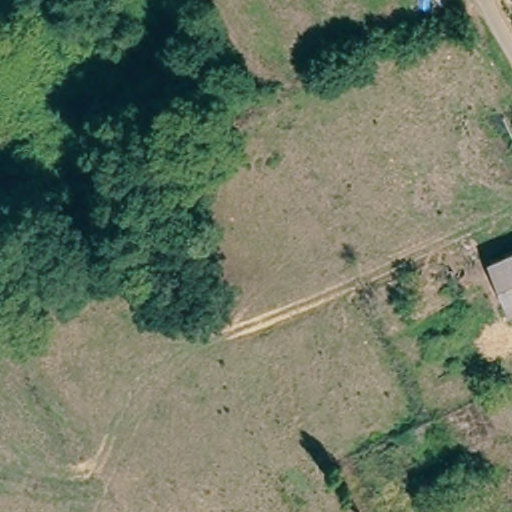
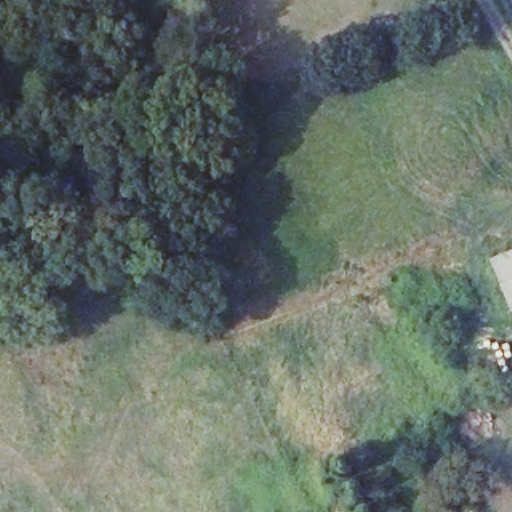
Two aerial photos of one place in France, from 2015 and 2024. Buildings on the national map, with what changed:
unchanged [(512,252),(512,309),(510,310),(486,265),(512,252)]

